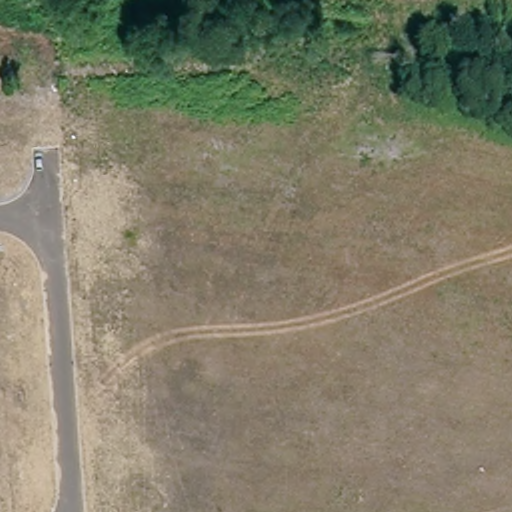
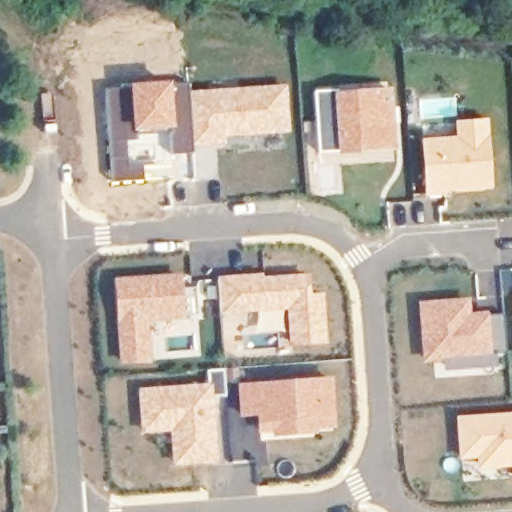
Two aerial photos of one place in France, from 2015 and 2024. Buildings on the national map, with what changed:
new [(130,87),(170,84),(187,83),(192,154),(172,155),(171,132),(137,134),(137,140),(125,141),(127,167),(143,166),(144,180),(111,182),(105,89),(130,87)]
new [(393,86),(399,149),(337,155),(337,153),(333,89),(393,86)]
new [(284,89),(286,130),(223,135),(224,142),(195,144),(192,97),(284,89)]
new [(333,89),(337,153),(317,154),(312,90),(333,89)]
new [(460,139),(459,122),(488,120),(493,186),(427,191),(424,142),(460,139)]
new [(150,321),(152,363),(121,366),(115,279),(182,274),(184,288),(196,288),(199,316),(150,321)]
new [(250,279),(250,282),(307,277),(309,297),(321,298),(323,341),(292,345),(288,308),(225,313),(223,281),(250,279)]
new [(471,298),(473,314),(489,312),(490,316),(505,314),(510,356),(425,364),(420,302),(471,298)]
new [(210,388),(209,372),(224,372),(225,398),(210,399),(214,458),(182,461),(179,421),(145,424),(142,392),(210,388)]
new [(332,380),(335,425),(317,426),(317,436),(262,440),(260,414),(242,415),(240,386),(332,380)]
new [(512,416),(512,459),(498,460),(497,453),(463,456),(461,419),(512,416)]

